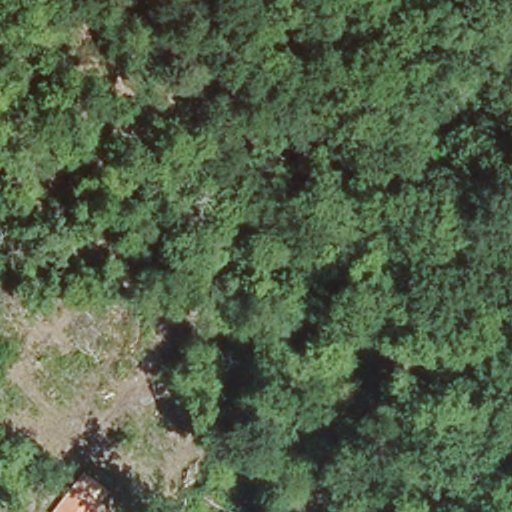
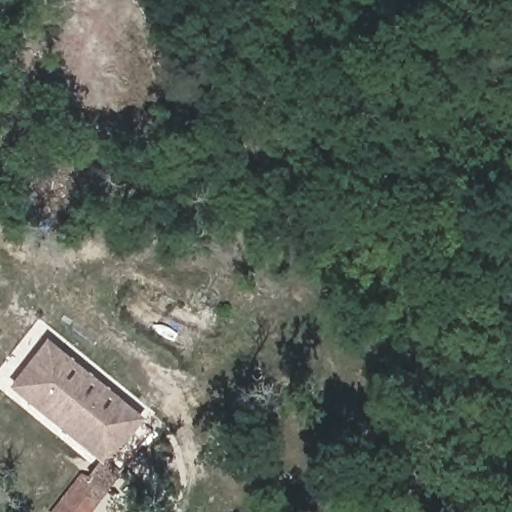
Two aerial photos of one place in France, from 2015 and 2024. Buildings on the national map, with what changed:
new [(7,386),(44,338),(140,417),(102,463),(7,386)]
new [(104,490),(87,512),(49,512),(81,472),(104,490)]

